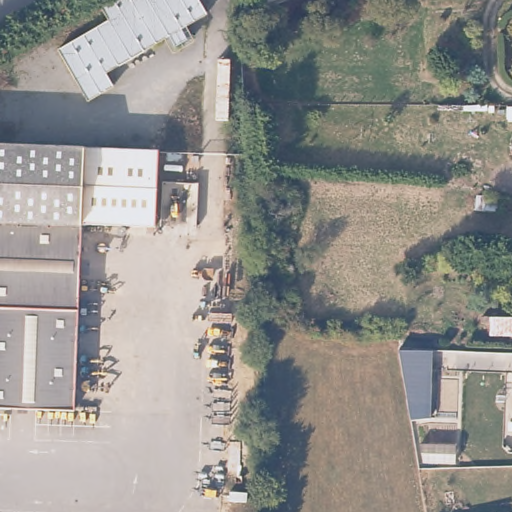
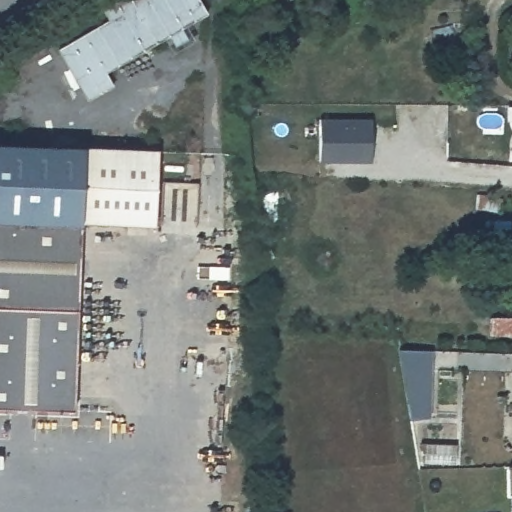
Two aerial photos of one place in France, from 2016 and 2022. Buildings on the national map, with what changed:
unchanged [(109,71),(116,85),(86,100),(55,48),(109,17),(100,4),(107,0),(204,0),(211,11),(109,71)]
new [(316,115),(368,115),(367,158),(315,158),(316,115)]
unchanged [(157,225),(83,223),(74,410),(0,407),(0,142),(160,147),(157,225)]
unchanged [(512,318),(512,337),(488,335),(489,316),(512,318)]
unchanged [(432,348),(431,369),(427,369),(426,415),(411,414),(399,346),(432,348)]

